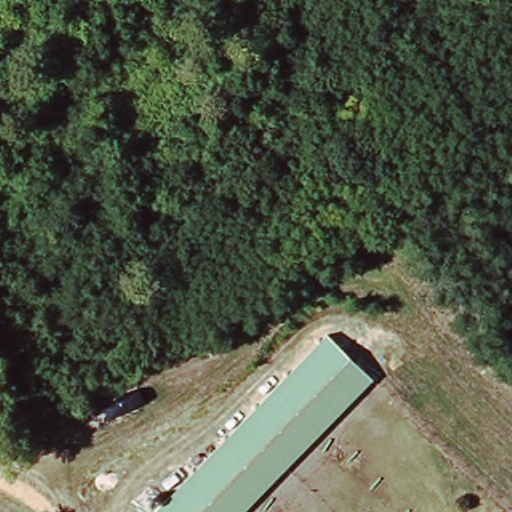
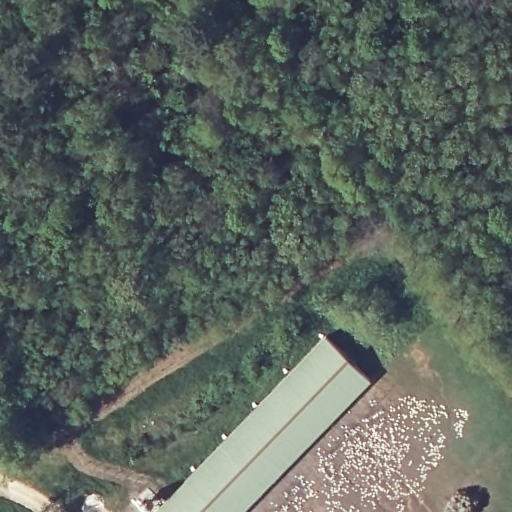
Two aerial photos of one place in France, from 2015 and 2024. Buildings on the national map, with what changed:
unchanged [(329,337),(372,381),(245,512),(157,512),(329,337)]

